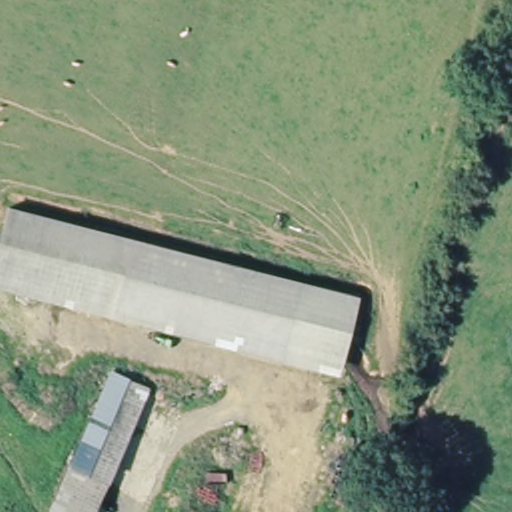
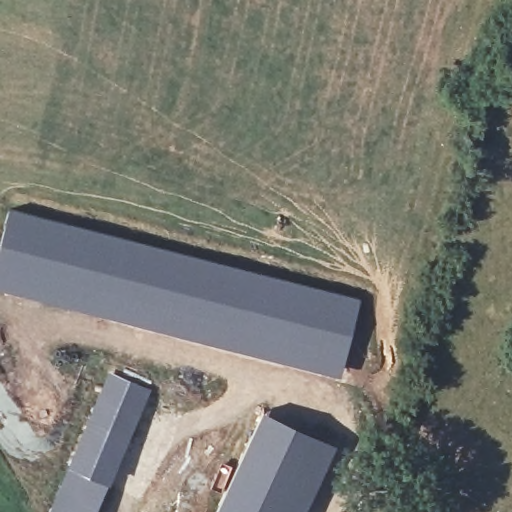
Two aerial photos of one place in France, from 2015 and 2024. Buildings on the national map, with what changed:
unchanged [(0,291),(0,224),(4,207),(126,238),(107,316),(0,291)]
unchanged [(126,238),(305,285),(285,364),(107,316),(126,238)]
unchanged [(361,300),(341,378),(285,364),(305,285),(361,300)]
unchanged [(110,370),(150,388),(100,512),(53,512),(110,370)]
new [(263,411),(324,439),(290,512),(217,512),(263,411)]

